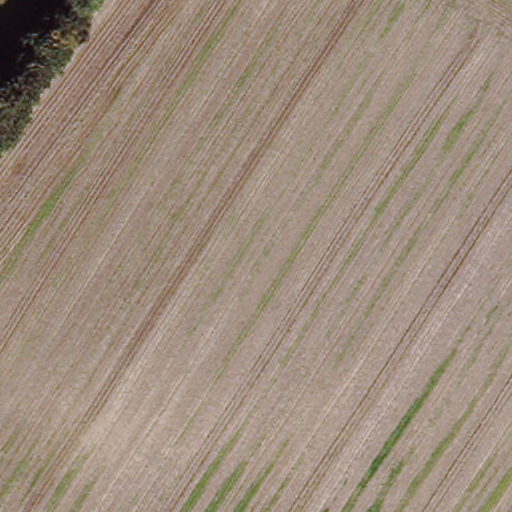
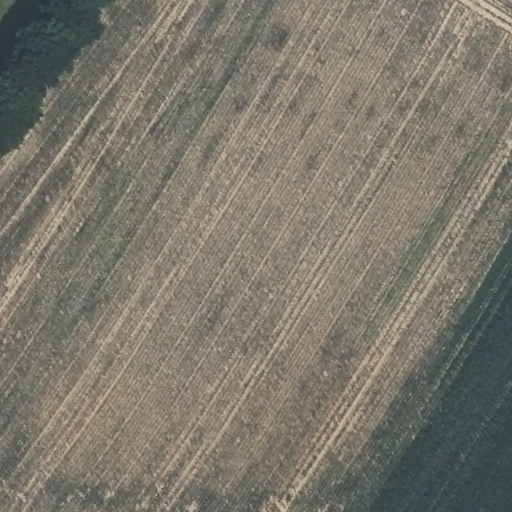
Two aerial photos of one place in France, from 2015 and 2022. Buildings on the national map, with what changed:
[]

